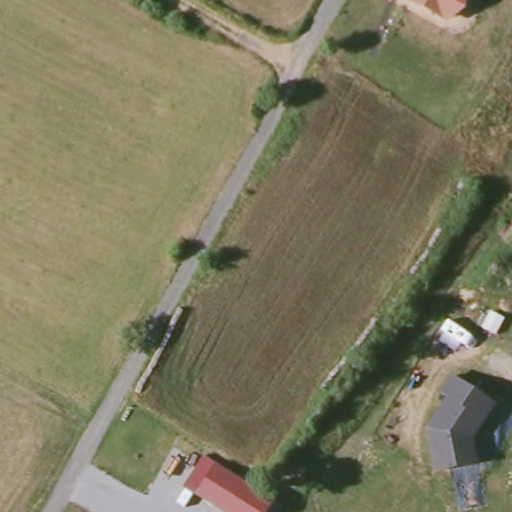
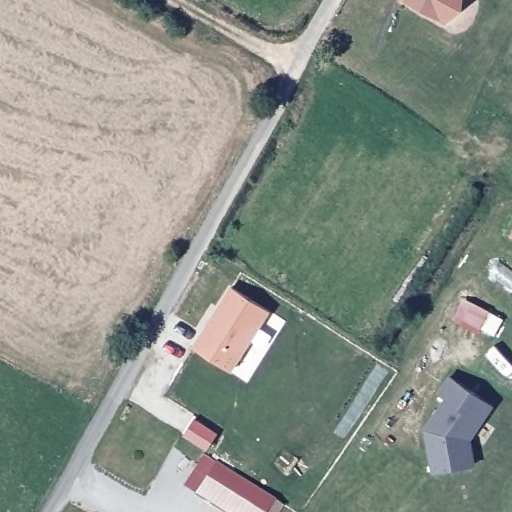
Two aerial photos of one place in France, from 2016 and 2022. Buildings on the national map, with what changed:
unchanged [(455,6),(442,19),(406,0),(457,0),(455,6)]
new [(270,311),(231,372),(192,346),(230,285),(270,311)]
unchanged [(423,429),(445,397),(436,392),(449,373),(495,403),(472,441),(477,462),(432,474),(423,429)]
unchanged [(202,456),(273,500),(265,512),(221,512),(181,486),(202,456)]

